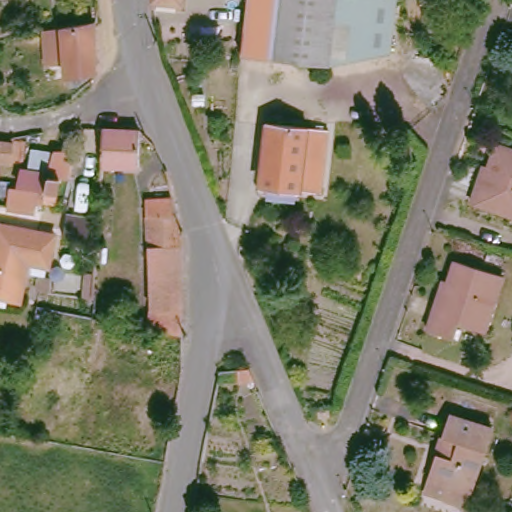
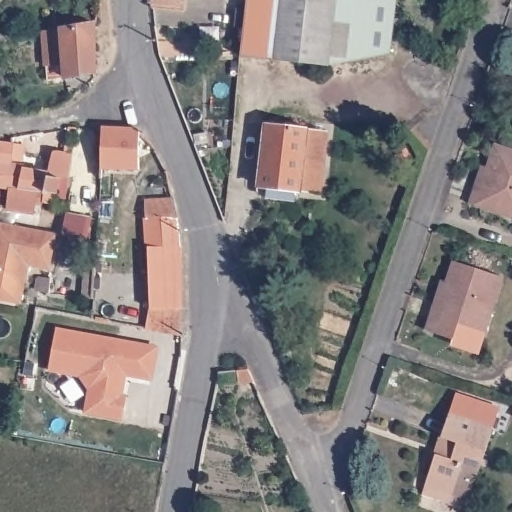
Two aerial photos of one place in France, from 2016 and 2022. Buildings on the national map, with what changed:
unchanged [(181,2),(169,0),(181,0),(181,2)]
unchanged [(274,59),(243,55),(249,0),(336,0),(328,66),(274,59)]
unchanged [(337,59),(342,0),(396,0),(392,50),(337,59)]
unchanged [(68,79),(67,65),(47,68),(44,33),(93,28),(97,76),(68,79)]
unchanged [(255,185),(258,157),(253,156),(258,121),(315,128),(310,163),(306,193),(293,191),(255,185)]
unchanged [(317,182),(320,142),(322,122),(328,122),(324,183),(317,182)]
unchanged [(103,167),(105,129),(141,130),(146,133),(144,168),(103,167)]
unchanged [(0,160),(0,139),(7,141),(6,161),(0,160)]
unchanged [(479,183),(484,185),(496,141),(512,146),(512,213),(473,202),(479,183)]
unchanged [(5,202),(7,179),(18,181),(21,166),(46,171),(49,148),(63,150),(58,173),(54,196),(43,195),(44,186),(33,184),(30,204),(5,202)]
unchanged [(182,253),(182,321),(147,322),(141,202),(171,201),(175,221),(175,254),(182,253)]
unchanged [(18,300),(0,297),(0,224),(3,225),(50,231),(45,265),(25,263),(18,300)]
unchanged [(456,327),(453,341),(428,334),(435,304),(440,305),(452,264),(501,279),(484,335),(456,327)]
unchanged [(50,286),(46,285),(47,276),(52,276),(55,277),(54,286),(50,286)]
new [(86,413),(91,390),(80,375),(50,369),(57,329),(160,347),(154,381),(127,376),(124,395),(128,396),(124,420),(86,413)]
unchanged [(426,484),(444,421),(486,433),(469,495),(426,484)]

